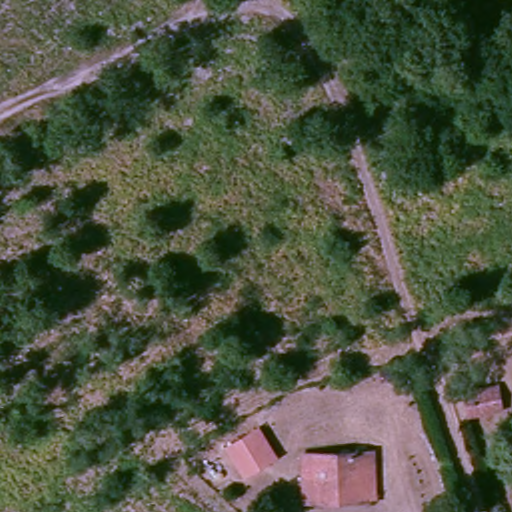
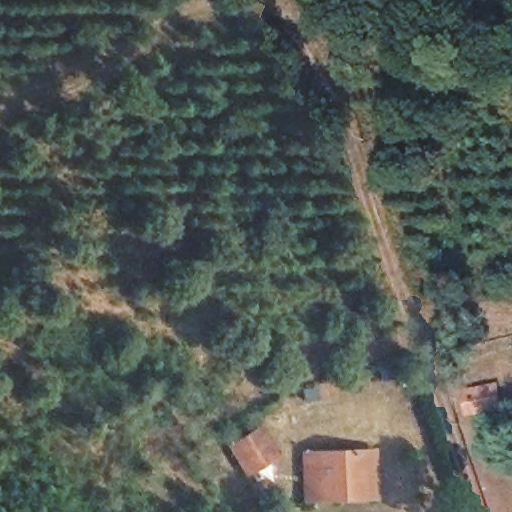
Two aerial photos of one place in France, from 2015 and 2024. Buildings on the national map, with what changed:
unchanged [(470,416),(465,394),(497,388),(503,409),(470,416)]
unchanged [(243,446),(270,429),(286,455),(258,471),(243,446)]
unchanged [(306,485),(305,458),(360,456),(376,456),(377,503),(362,503),(322,505),(307,505),(306,485)]

